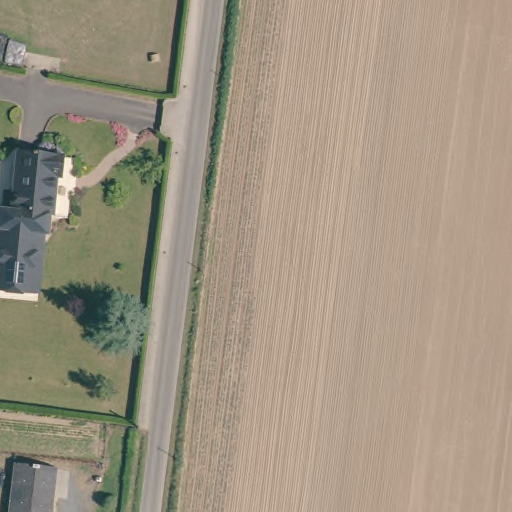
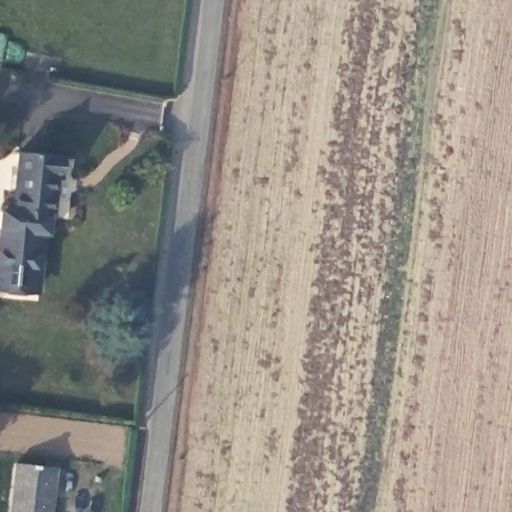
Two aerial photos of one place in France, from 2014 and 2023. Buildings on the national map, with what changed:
unchanged [(65,179),(61,178),(57,218),(51,217),(50,236),(44,235),(38,293),(0,289),(0,267),(5,212),(16,214),(22,152),(67,157),(65,179)]
unchanged [(12,512),(20,462),(59,467),(52,512),(12,512)]

